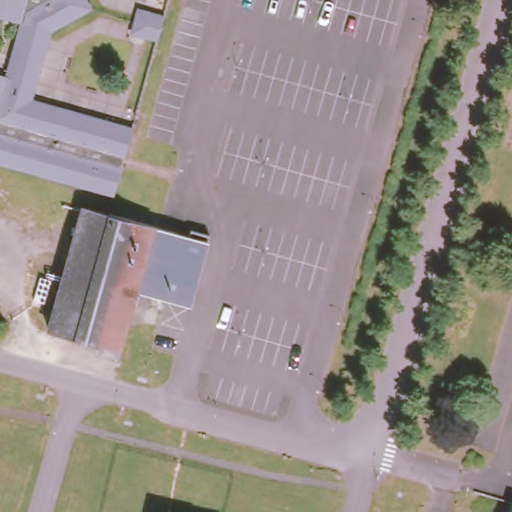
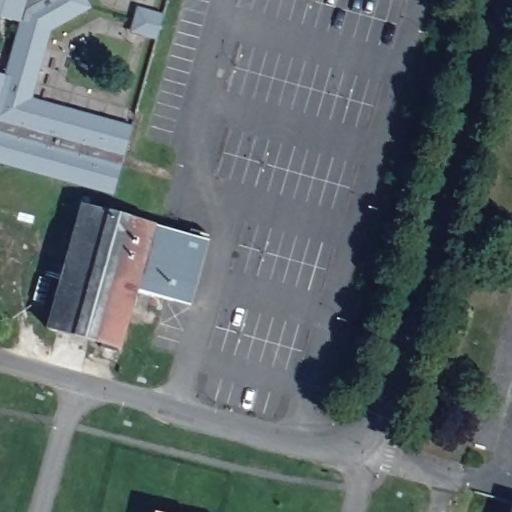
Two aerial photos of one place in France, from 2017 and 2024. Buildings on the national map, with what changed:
unchanged [(40,31),(31,62),(39,64),(30,93),(32,94),(43,103),(57,101),(64,103),(75,112),(89,110),(132,122),(112,190),(70,178),(59,169),(45,171),(37,169),(27,160),(12,161),(0,158),(0,68),(3,69),(18,16),(0,11),(0,0),(88,0),(90,4),(40,31)]
unchanged [(145,8),(165,13),(157,37),(139,31),(145,8)]
unchanged [(80,200),(205,236),(187,301),(131,285),(115,343),(45,323),(80,200)]
unchanged [(512,498),(512,512),(508,512),(512,498)]

